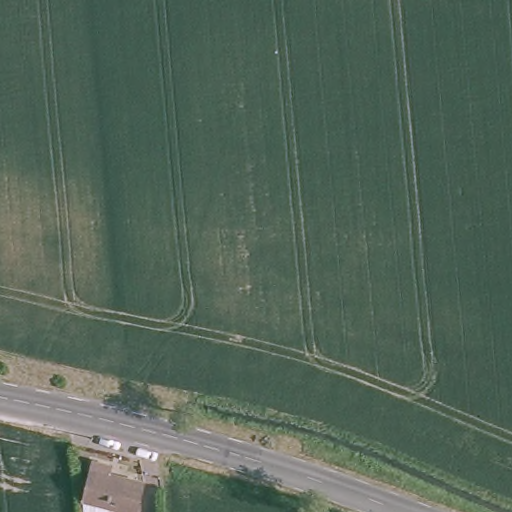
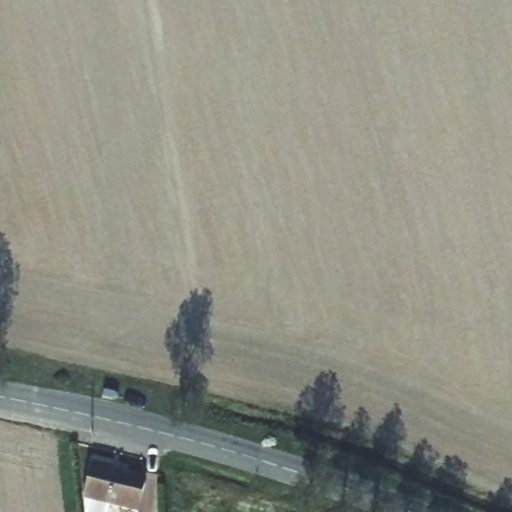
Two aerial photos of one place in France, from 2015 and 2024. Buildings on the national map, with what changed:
unchanged [(110,462),(107,472),(139,482),(130,512),(128,512),(103,504),(100,512),(79,512),(78,507),(92,457),(110,462)]

